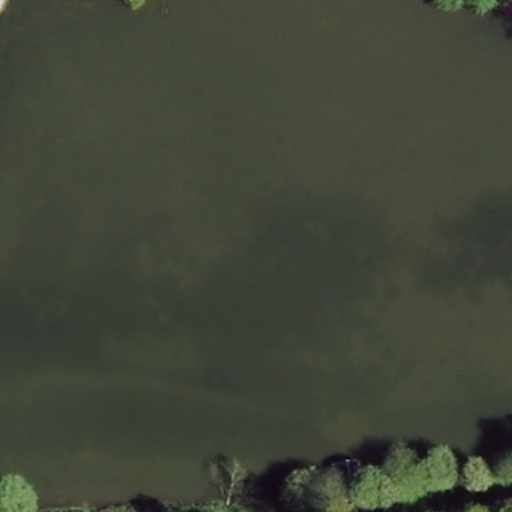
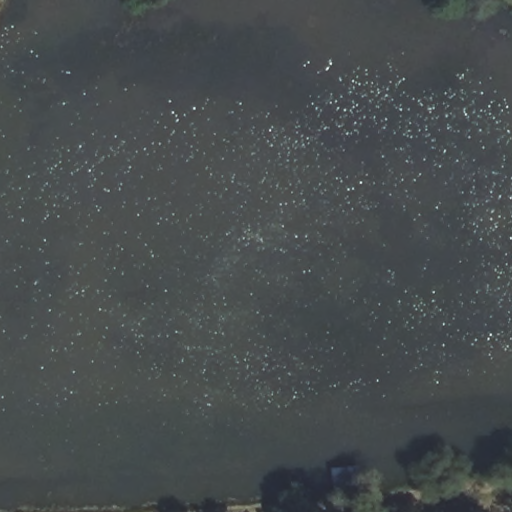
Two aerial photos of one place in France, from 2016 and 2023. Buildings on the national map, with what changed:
unchanged [(328,464),(358,462),(362,498),(335,499),(328,464)]

